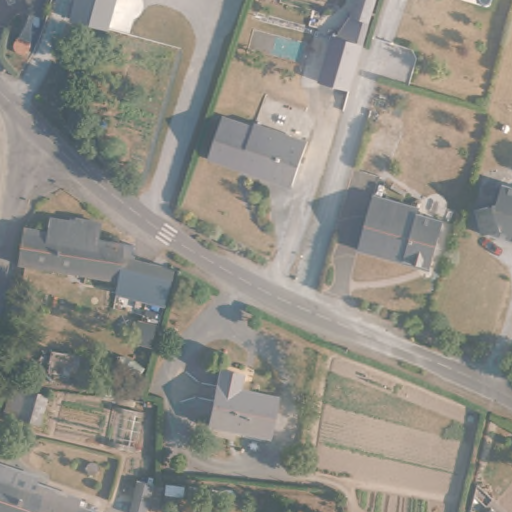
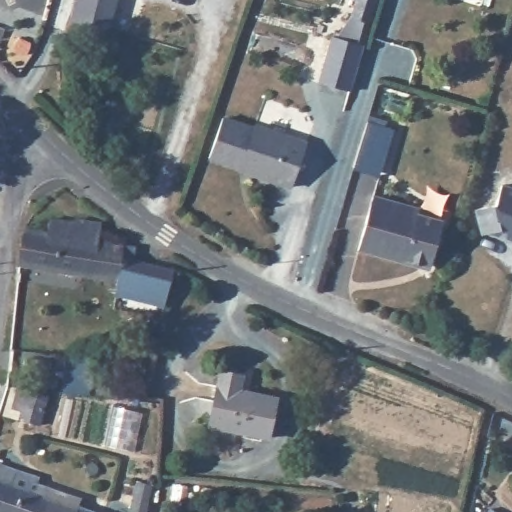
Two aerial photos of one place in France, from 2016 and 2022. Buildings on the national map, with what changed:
unchanged [(108,33),(71,25),(77,0),(116,0),(108,33)]
unchanged [(349,93),(316,86),(330,36),(333,36),(350,15),(354,0),(375,0),(349,93)]
unchanged [(25,32),(29,33),(31,35),(34,39),(32,44),(30,48),(26,51),(21,51),(17,48),(15,44),(15,40),(19,35),(22,33),(25,32)]
new [(351,168),(367,120),(392,128),(377,176),(351,168)]
unchanged [(244,129),(296,147),(283,185),(219,163),(204,158),(216,121),(231,126),(243,130),(244,129)]
unchanged [(512,192),(512,244),(483,236),(476,239),(468,214),(489,208),(494,188),(512,192)]
unchanged [(414,214),(413,219),(442,227),(432,264),(422,270),(400,264),(400,266),(353,252),(367,200),(414,214)]
unchanged [(90,227),(90,238),(128,243),(125,260),(113,258),(110,279),(12,265),(17,227),(43,230),(45,220),(90,227)]
unchanged [(112,266),(113,258),(125,260),(172,269),(164,308),(115,296),(120,281),(110,279),(112,266)]
unchanged [(91,358),(87,380),(51,375),(55,352),(91,358)]
unchanged [(276,397),(266,439),(205,425),(216,369),(240,375),(238,388),(276,397)]
unchanged [(48,396),(40,424),(11,416),(20,388),(48,396)]
unchanged [(77,512),(0,512),(0,469),(15,473),(36,480),(33,490),(77,504),(75,511),(77,512)]

